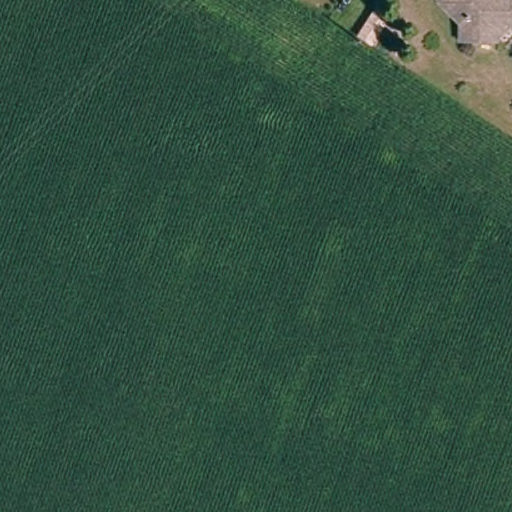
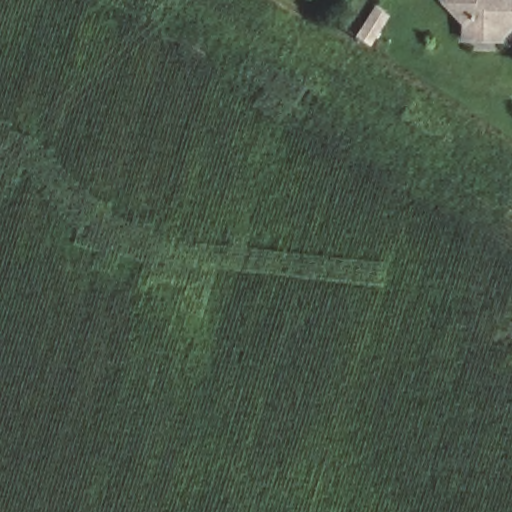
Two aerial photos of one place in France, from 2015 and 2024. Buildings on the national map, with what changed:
unchanged [(499,42),(484,42),(462,41),(461,18),(442,0),(512,0),(512,38),(504,46),(499,42)]
unchanged [(366,17),(370,10),(382,18),(378,23),(364,45),(352,37),(366,17)]

